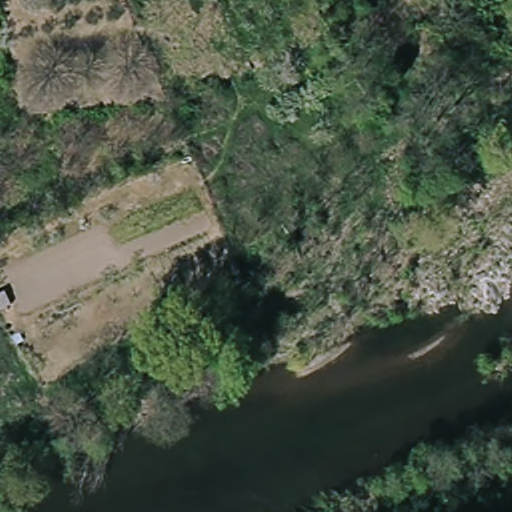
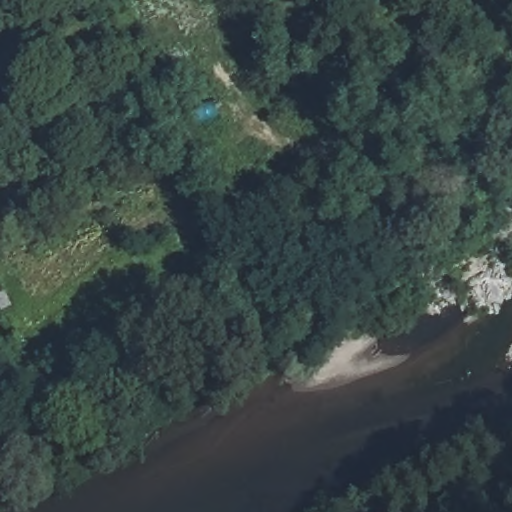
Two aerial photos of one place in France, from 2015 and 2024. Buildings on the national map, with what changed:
unchanged [(0,293),(11,289),(17,305),(3,310),(0,304),(0,293)]

